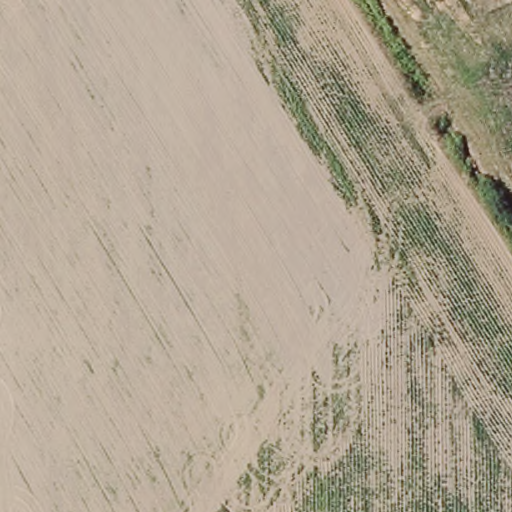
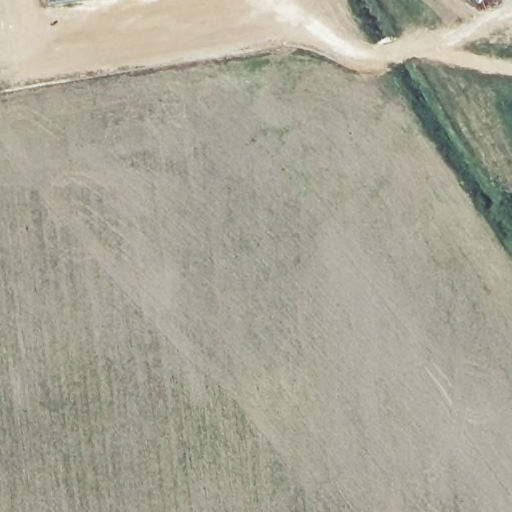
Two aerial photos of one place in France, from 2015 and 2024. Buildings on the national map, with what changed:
new [(49,0),(91,0),(50,6),(49,0)]

